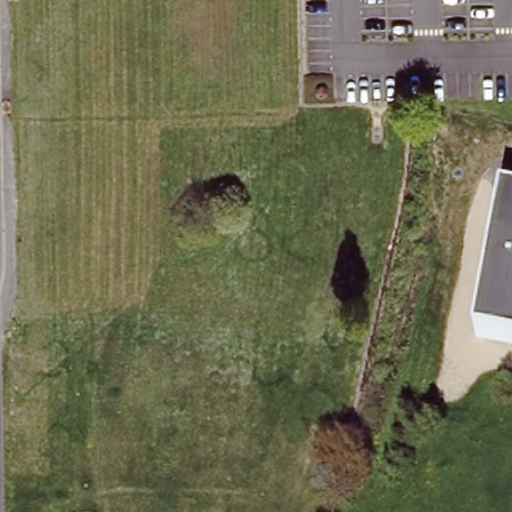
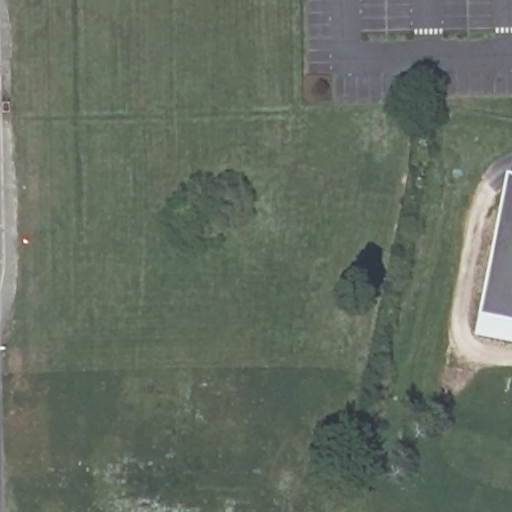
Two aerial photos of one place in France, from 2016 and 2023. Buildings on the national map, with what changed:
unchanged [(512,193),(512,338),(475,331),(503,191),(512,193)]

